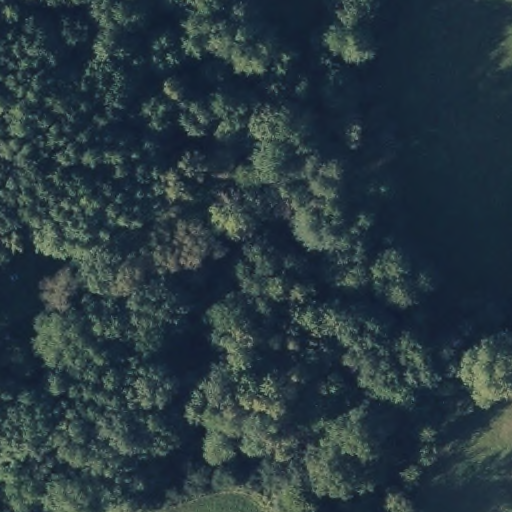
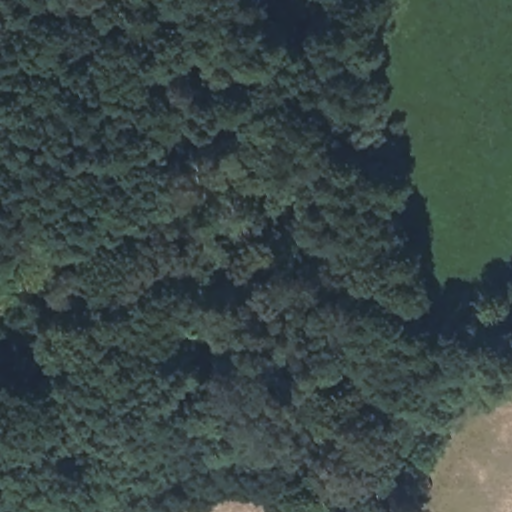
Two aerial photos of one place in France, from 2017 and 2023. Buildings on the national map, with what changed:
[]

